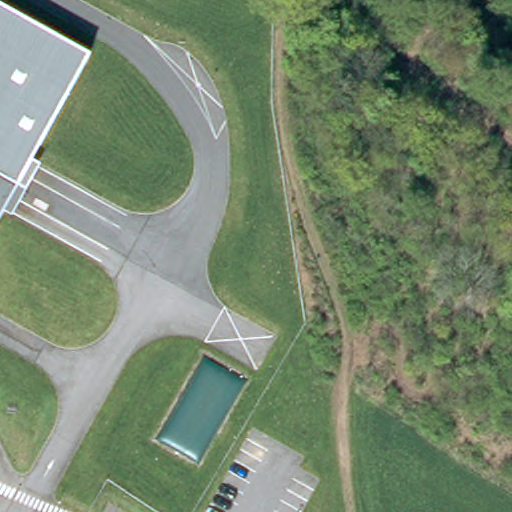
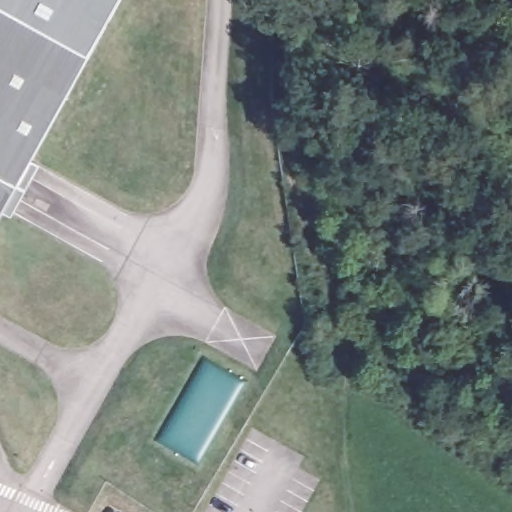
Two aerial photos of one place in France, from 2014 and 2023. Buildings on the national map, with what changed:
new [(0,4),(0,0),(122,0),(91,55),(0,4)]
unchanged [(11,197),(18,184),(0,173),(0,4),(91,55),(32,160),(41,165),(11,216),(3,212),(6,205),(11,197)]
unchanged [(0,217),(0,173),(18,184),(0,217)]

